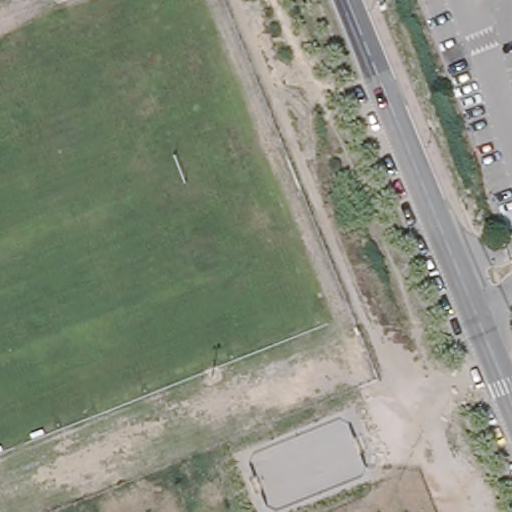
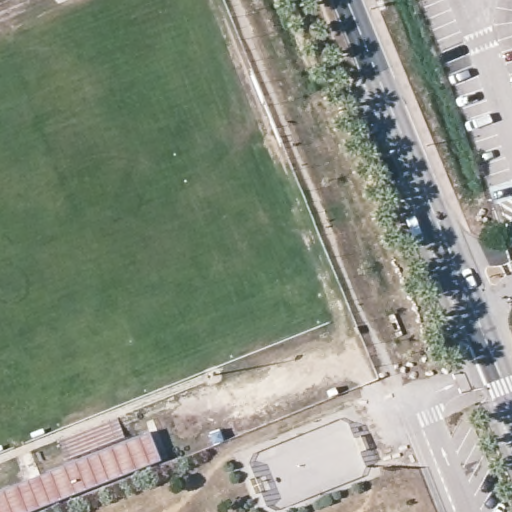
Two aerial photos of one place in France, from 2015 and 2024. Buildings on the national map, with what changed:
new [(30,512),(0,512),(0,491),(150,432),(162,460),(30,512)]

